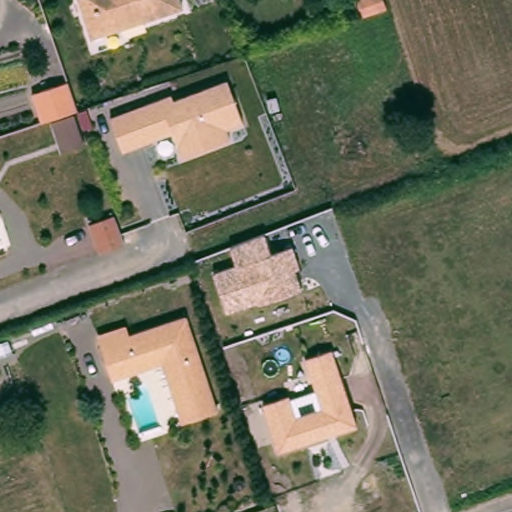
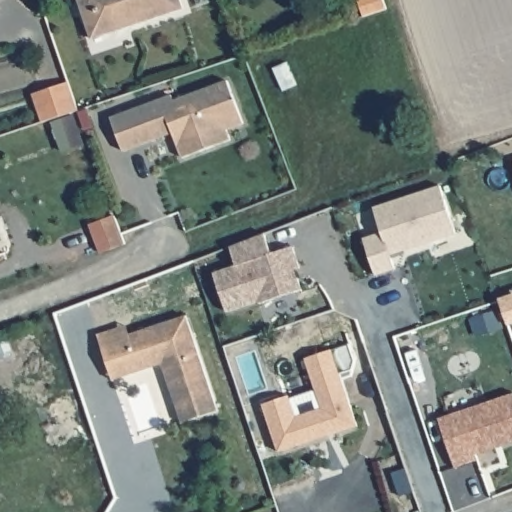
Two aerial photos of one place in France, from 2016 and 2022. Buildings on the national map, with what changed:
unchanged [(96,34),(85,0),(187,0),(188,4),(96,34)]
unchanged [(362,16),(357,0),(383,0),(386,9),(362,16)]
unchanged [(176,91),(178,95),(232,75),(248,119),(231,124),(235,135),(187,152),(177,127),(128,146),(115,113),(176,91)]
unchanged [(37,89),(73,77),(83,105),(81,106),(47,117),(37,89)]
unchanged [(79,111),(88,138),(66,146),(57,120),(79,111)]
new [(381,232),(373,207),(440,186),(455,234),(389,255),(394,269),(374,275),(363,238),(381,232)]
unchanged [(122,234),(126,243),(100,252),(90,225),(115,215),(122,234)]
unchanged [(214,272),(236,265),(230,246),(265,235),(272,254),(294,247),(302,271),(297,273),(302,290),(227,312),(214,272)]
new [(512,323),(508,325),(499,298),(512,294),(512,323)]
unchanged [(199,413),(175,342),(114,363),(106,339),(103,330),(132,320),(134,330),(192,311),(223,406),(199,413)]
unchanged [(175,342),(199,413),(187,417),(168,358),(118,375),(114,363),(175,342)]
unchanged [(337,348),(361,426),(282,450),(265,402),(291,394),(297,415),(323,406),(308,357),(337,348)]
new [(512,394),(512,441),(475,455),(477,460),(457,467),(440,417),(512,394)]

